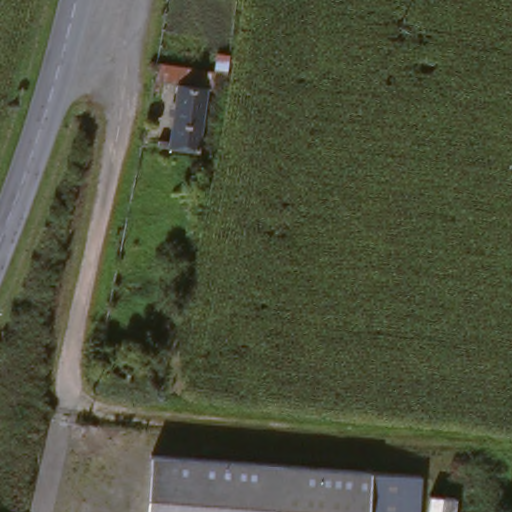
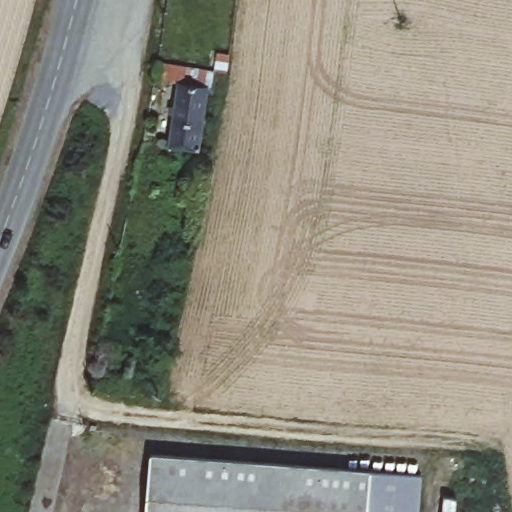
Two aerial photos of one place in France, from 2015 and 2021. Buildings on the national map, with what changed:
unchanged [(169,162),(179,85),(156,81),(159,59),(219,67),(206,169),(169,162)]
unchanged [(91,371),(95,357),(134,364),(129,388),(89,379),(91,371)]
unchanged [(154,460),(414,476),(412,512),(150,512),(154,460)]

